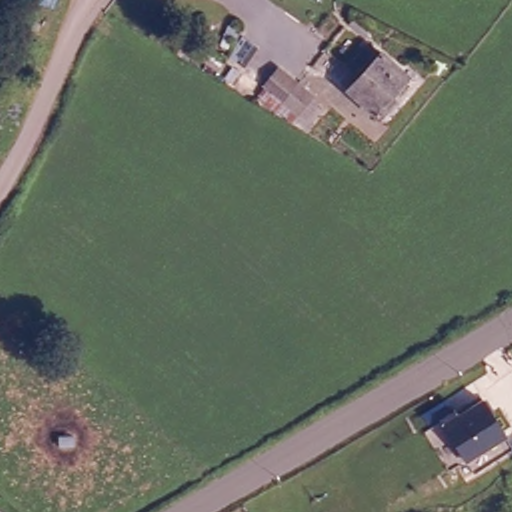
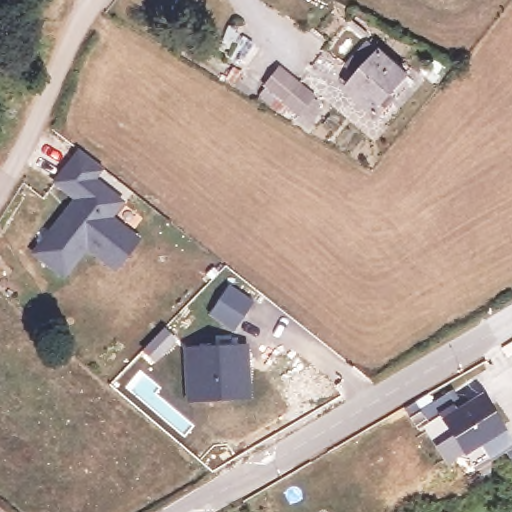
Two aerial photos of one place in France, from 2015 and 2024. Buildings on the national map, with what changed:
unchanged [(395,96),(400,103),(392,118),(347,93),(356,76),(348,71),(363,46),(409,73),(395,96)]
unchanged [(253,96),(269,70),(290,83),(311,94),(307,105),(318,113),(307,128),(275,110),(253,96)]
new [(114,269),(101,261),(85,248),(62,277),(32,253),(63,214),(72,202),(75,199),(54,182),(79,150),(100,168),(91,179),(120,202),(109,217),(125,230),(137,240),(114,269)]
new [(230,286),(255,303),(243,320),(219,304),(230,286)]
new [(188,403),(187,384),(185,349),(247,346),(249,380),(250,400),(188,403)]
unchanged [(427,423),(445,411),(448,415),(485,391),(512,432),(512,440),(476,463),(468,450),(451,460),(445,450),(427,423)]

